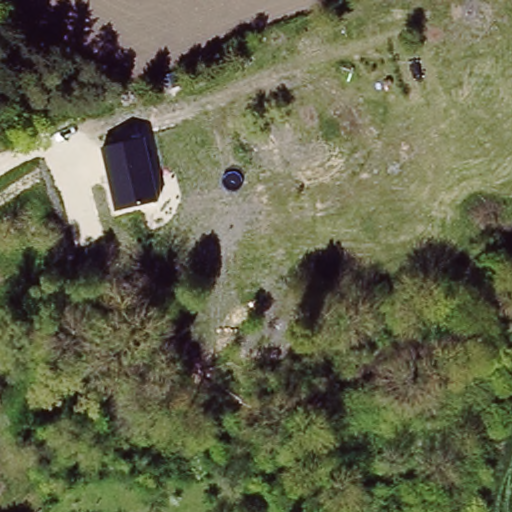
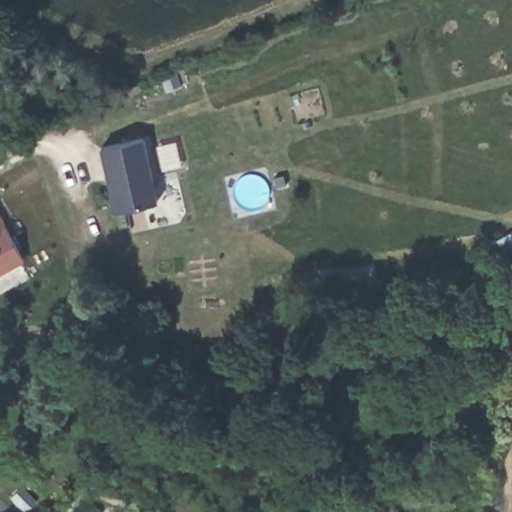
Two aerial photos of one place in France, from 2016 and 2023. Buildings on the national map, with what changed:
unchanged [(146,137),(159,202),(114,212),(100,147),(146,137)]
new [(24,262),(0,275),(0,214),(24,262)]

